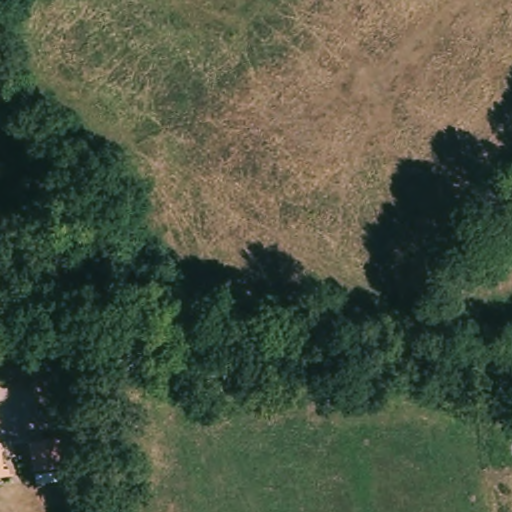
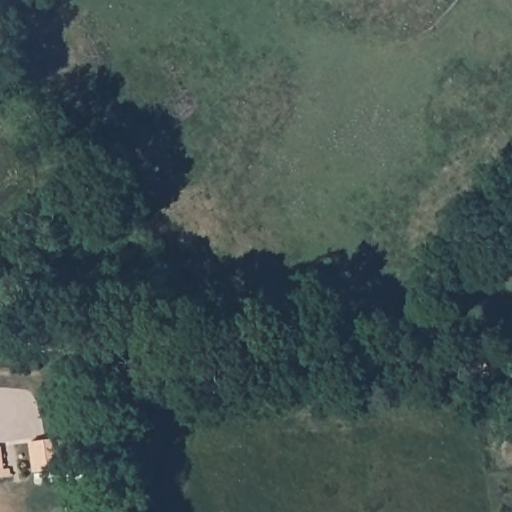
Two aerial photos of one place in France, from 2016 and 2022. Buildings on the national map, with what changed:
unchanged [(46,438),(82,434),(86,463),(50,468),(46,438)]
unchanged [(10,477),(0,479),(0,460),(9,459),(10,477)]

